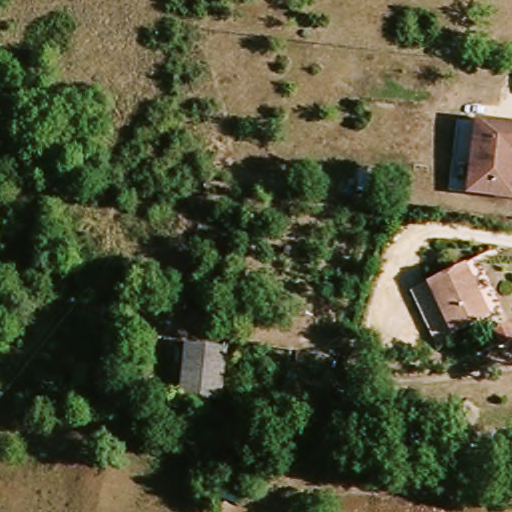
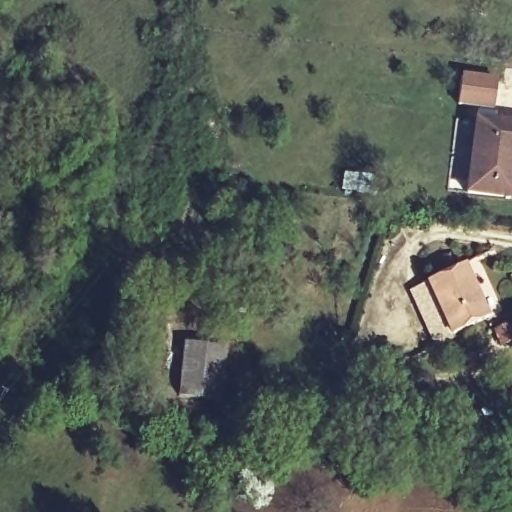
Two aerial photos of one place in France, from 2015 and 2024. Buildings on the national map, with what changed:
new [(494,110),(458,107),(463,75),(497,80),(494,110)]
unchanged [(512,128),(512,194),(471,187),(480,124),(512,128)]
unchanged [(489,317),(458,331),(432,277),(463,262),(489,317)]
unchanged [(188,345),(228,348),(223,399),(183,395),(188,345)]

